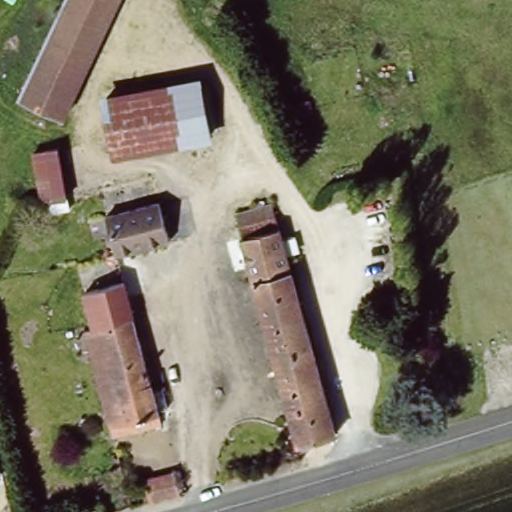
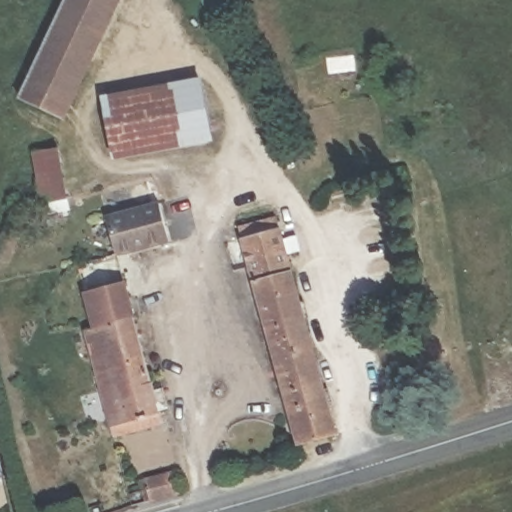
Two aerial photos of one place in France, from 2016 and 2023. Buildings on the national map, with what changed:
unchanged [(61,0),(119,0),(62,121),(15,101),(61,0)]
unchanged [(189,81),(198,123),(112,141),(99,100),(189,81)]
unchanged [(40,202),(26,155),(56,149),(65,196),(40,202)]
unchanged [(99,243),(91,212),(151,199),(166,233),(120,240),(99,243)]
unchanged [(225,222),(272,210),(297,296),(253,308),(225,222)]
unchanged [(83,312),(95,307),(91,288),(86,267),(125,257),(130,276),(173,424),(123,436),(90,337),(83,312)]
unchanged [(297,296),(340,440),(302,453),(253,308),(297,296)]
unchanged [(178,493),(147,500),(142,477),(171,468),(178,493)]

